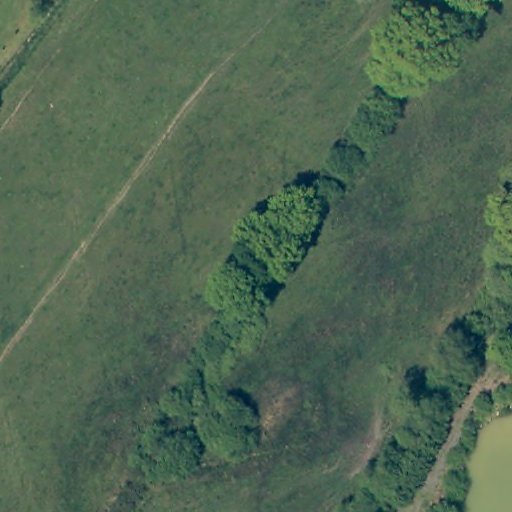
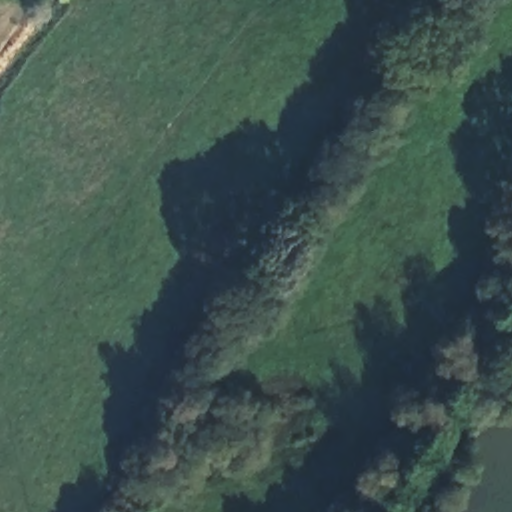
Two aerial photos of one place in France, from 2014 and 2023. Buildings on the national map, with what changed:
[]

